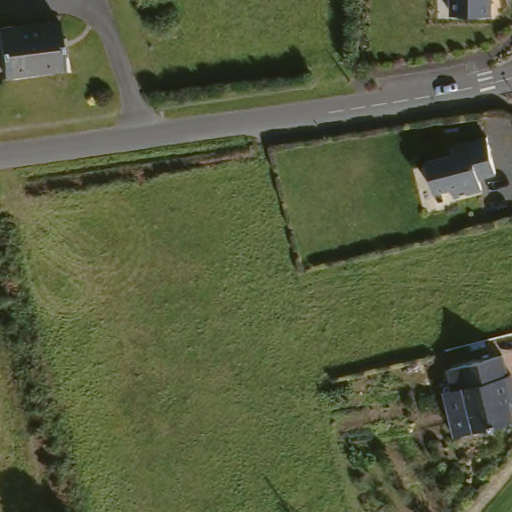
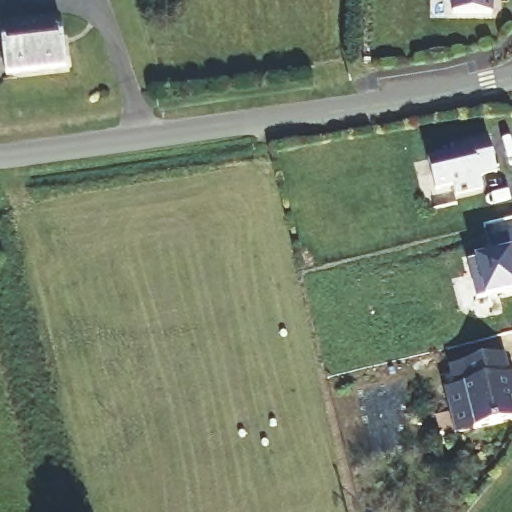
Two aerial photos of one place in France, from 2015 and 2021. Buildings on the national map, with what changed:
unchanged [(499,9),(460,10),(460,0),(499,0),(499,9)]
unchanged [(66,17),(71,65),(11,71),(4,24),(66,17)]
unchanged [(454,154),(453,145),(489,136),(499,172),(482,176),(484,189),(457,195),(455,186),(437,191),(429,160),(454,154)]
new [(477,302),(467,264),(476,261),(491,257),(487,242),(512,236),(512,255),(512,294),(486,300),(477,302)]
unchanged [(444,392),(456,387),(450,365),(504,352),(510,372),(512,371),(512,393),(512,420),(475,430),(454,435),(444,392)]

